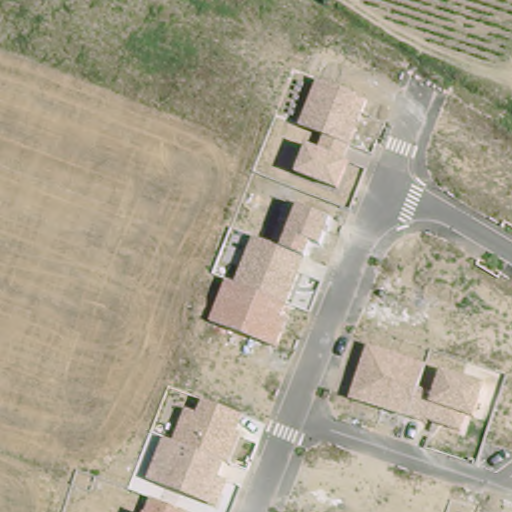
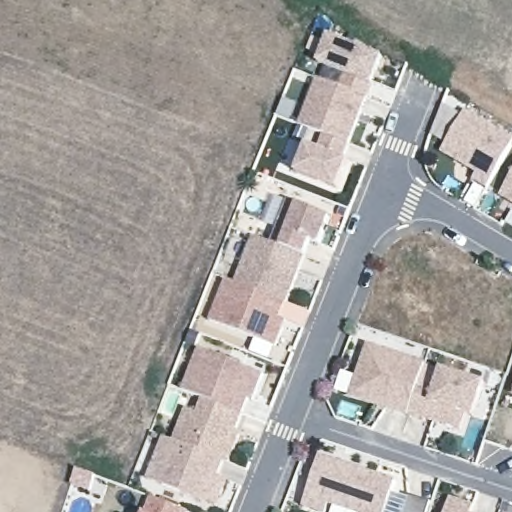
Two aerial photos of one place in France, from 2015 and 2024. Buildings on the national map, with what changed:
new [(339,89),(344,75),(318,64),(329,37),(385,59),(365,99),(339,89)]
unchanged [(297,173),(307,146),(317,150),(322,136),(301,126),(317,81),(365,99),(350,143),(344,160),(348,162),(337,190),(297,173)]
new [(512,137),(512,147),(488,189),(472,180),(477,174),(440,154),(466,113),(512,137)]
new [(501,198),(512,178),(512,204),(501,198)]
unchanged [(226,282),(235,285),(254,237),(280,248),(298,206),(330,219),(321,246),(312,242),(305,258),(287,302),(279,322),(287,324),(277,346),(210,322),(226,282)]
unchanged [(368,344),(426,363),(419,385),(434,390),(440,369),(484,383),(474,417),(466,415),(461,431),(410,415),(351,397),(368,344)]
new [(254,403),(249,401),(242,417),(202,402),(202,397),(182,391),(199,349),(265,376),(254,403)]
unchanged [(163,439),(171,442),(185,408),(197,413),(202,402),(242,417),(235,435),(241,437),(232,465),(225,463),(220,477),(227,480),(217,506),(147,479),(163,439)]
new [(402,493),(396,512),(311,512),(326,468),(402,493)]
unchanged [(187,511),(187,512),(144,512),(150,497),(187,511)]
new [(438,512),(412,512),(415,505),(438,512)]
unchanged [(458,512),(454,512),(455,511),(458,512)]

